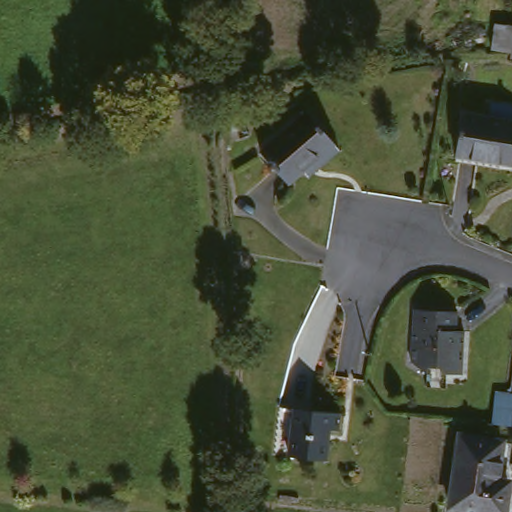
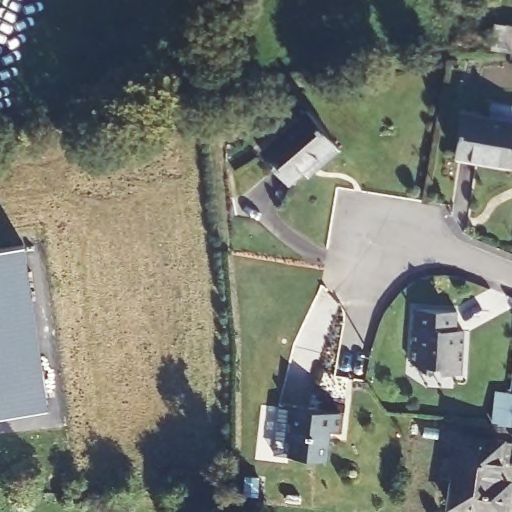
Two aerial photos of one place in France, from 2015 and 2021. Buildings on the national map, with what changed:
unchanged [(498,120),(512,122),(512,160),(511,166),(458,157),(464,114),(498,120)]
unchanged [(264,153),(277,141),(306,115),(338,148),(309,175),(303,170),(290,183),(264,153)]
new [(24,245),(48,406),(0,413),(0,249),(24,245)]
unchanged [(418,307),(459,312),(458,328),(466,329),(461,374),(439,372),(439,367),(424,364),(424,372),(412,361),(418,307)]
unchanged [(348,429),(339,427),(334,458),(298,454),(283,452),(287,415),(288,404),(303,406),(307,407),(349,412),(348,429)]
unchanged [(461,435),(503,440),(499,471),(498,488),(508,488),(504,511),(452,505),(461,435)]

